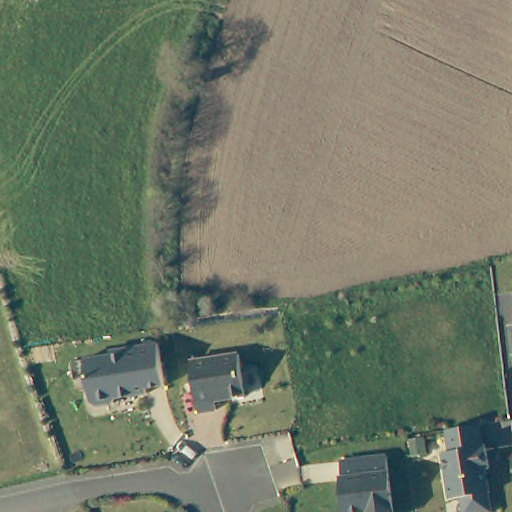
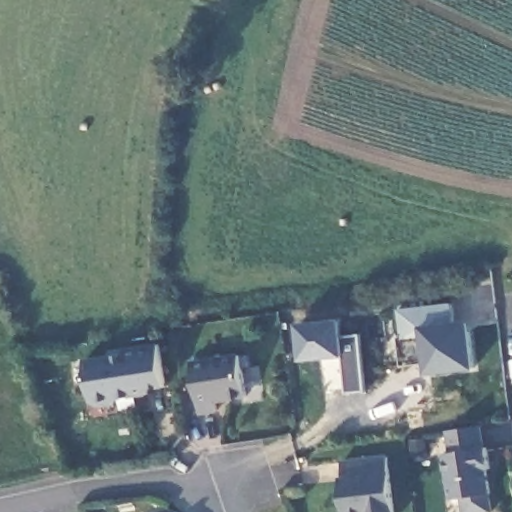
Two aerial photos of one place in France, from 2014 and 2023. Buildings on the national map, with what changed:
new [(476,369),(426,374),(425,364),(401,367),(396,337),(401,335),(398,308),(452,301),(457,321),(470,320),(476,369)]
new [(342,335),(361,332),(365,389),(347,391),(345,356),(300,359),(297,323),(341,318),(342,335)]
unchanged [(162,383),(159,383),(144,385),(145,387),(133,389),(134,392),(115,395),(111,400),(94,402),(89,399),(82,356),(108,352),(107,348),(156,340),(162,383)]
unchanged [(190,359),(238,352),(244,393),(213,397),(215,407),(197,409),(190,359)]
unchanged [(481,442),(485,441),(488,462),(484,463),(487,486),(487,487),(489,504),(463,509),(461,491),(450,492),(443,448),(450,447),(446,425),(477,420),(481,442)]
unchanged [(342,477),(340,460),(386,456),(388,472),(395,512),(344,512),(339,478),(342,477)]

